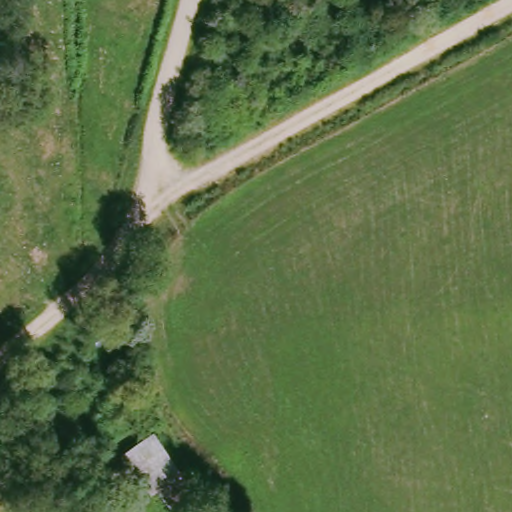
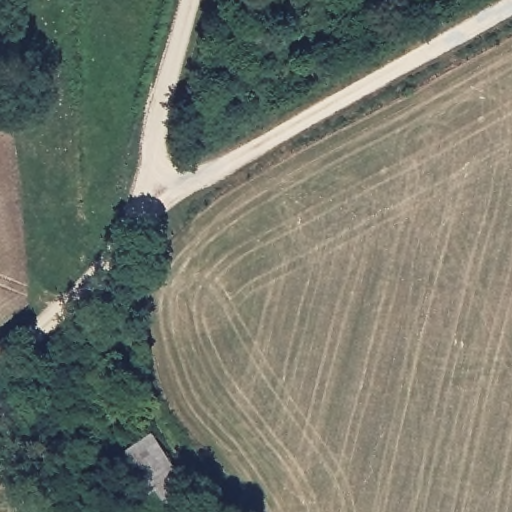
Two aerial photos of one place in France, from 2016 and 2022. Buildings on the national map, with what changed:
unchanged [(155,432),(179,467),(150,487),(147,489),(123,454),(155,432)]
unchanged [(179,467),(196,493),(171,510),(158,491),(155,494),(150,487),(179,467)]

